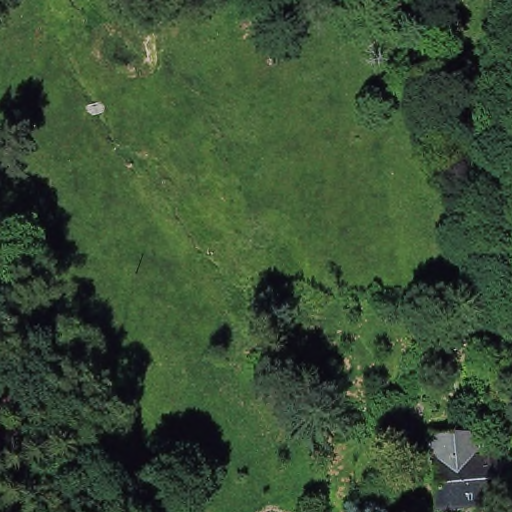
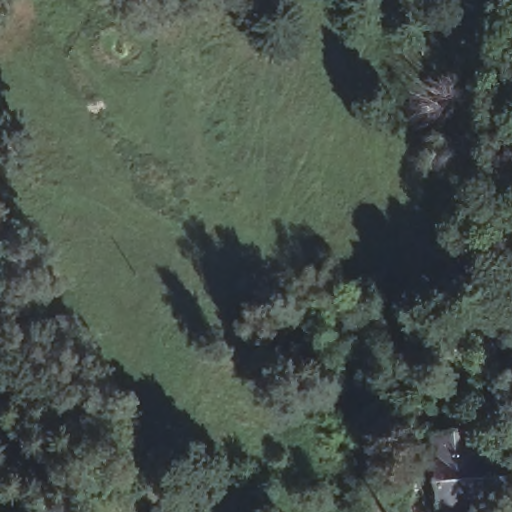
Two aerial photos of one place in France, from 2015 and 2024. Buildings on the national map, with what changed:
unchanged [(512,436),(512,500),(437,502),(436,476),(435,454),(432,430),(480,427),(482,452),(495,451),(494,437),(512,436)]

